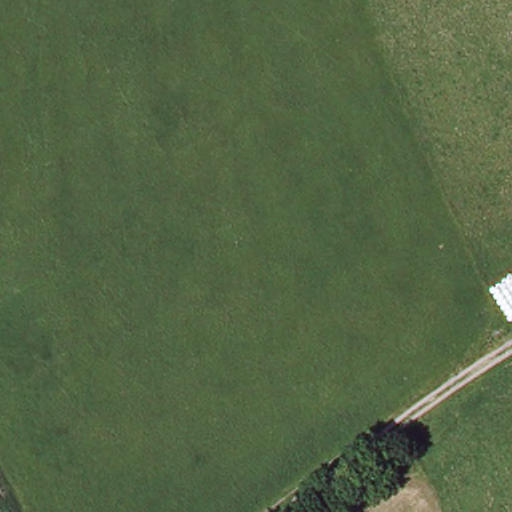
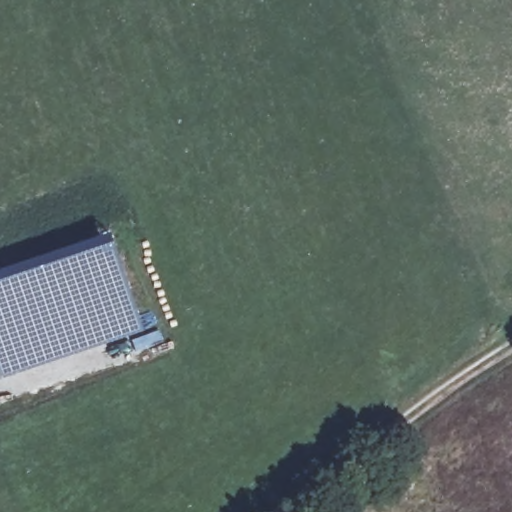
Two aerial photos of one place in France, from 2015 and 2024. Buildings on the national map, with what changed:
new [(90,275),(88,311),(90,347),(0,380),(0,280),(84,257),(90,275)]

